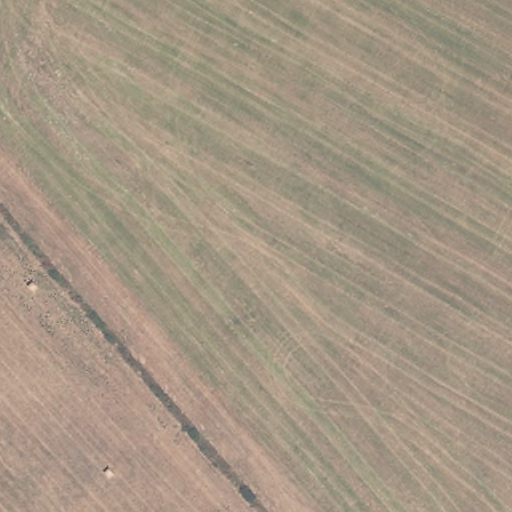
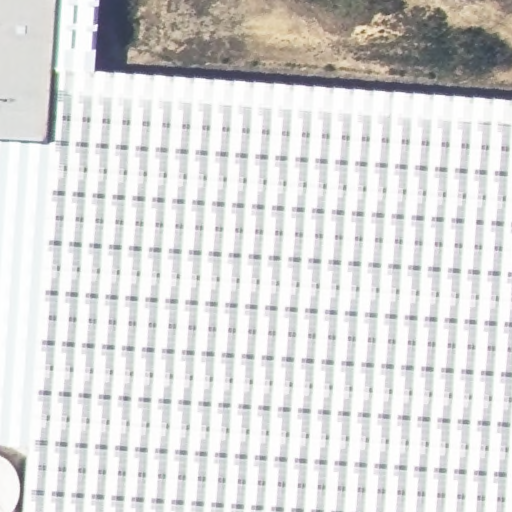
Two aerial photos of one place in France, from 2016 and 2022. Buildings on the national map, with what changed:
unchanged [(52,67),(48,139),(26,445),(0,443),(0,0),(56,0),(52,67)]
new [(512,512),(22,512),(26,445),(48,139),(52,67),(512,99),(512,512)]

